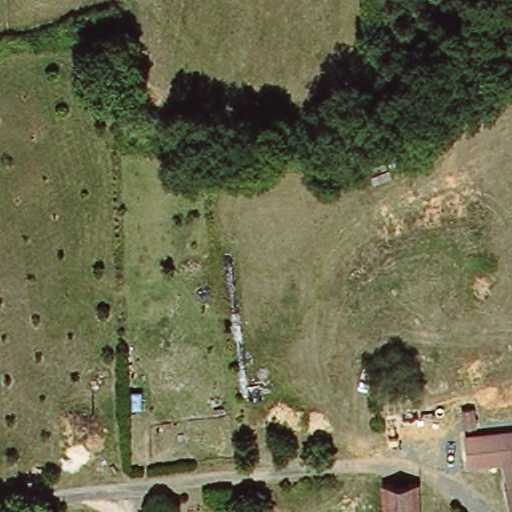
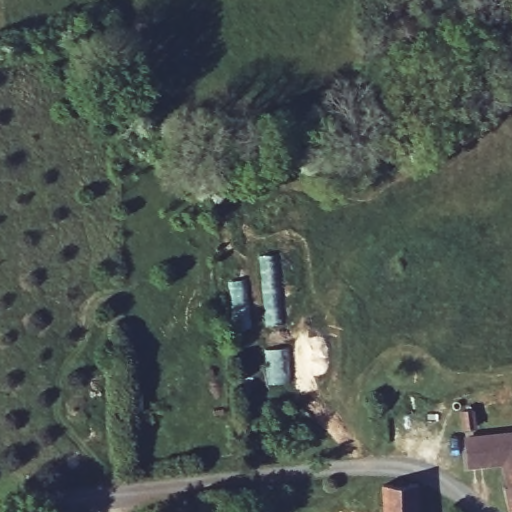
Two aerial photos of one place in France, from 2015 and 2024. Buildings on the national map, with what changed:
unchanged [(508,491),(501,469),(467,472),(467,466),(465,454),(464,445),(512,438),(512,512),(511,512),(504,493),(508,491)]
unchanged [(407,489),(409,512),(381,512),(379,493),(407,489)]

